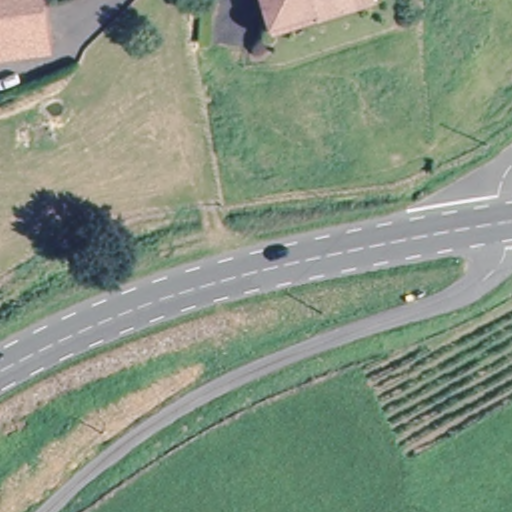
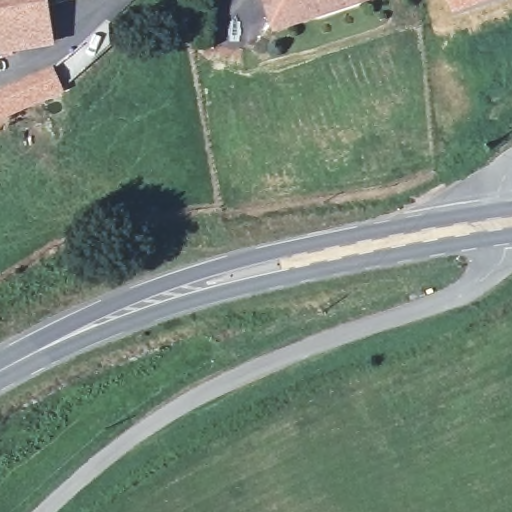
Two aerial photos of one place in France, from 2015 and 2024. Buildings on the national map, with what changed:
unchanged [(0,53),(0,0),(46,0),(50,27),(53,45),(11,52),(0,53)]
unchanged [(312,14),(312,9),(267,21),(261,0),(361,0),(312,14)]
new [(453,12),(448,0),(487,0),(453,12)]
new [(66,94),(0,122),(0,90),(52,67),(66,94)]

